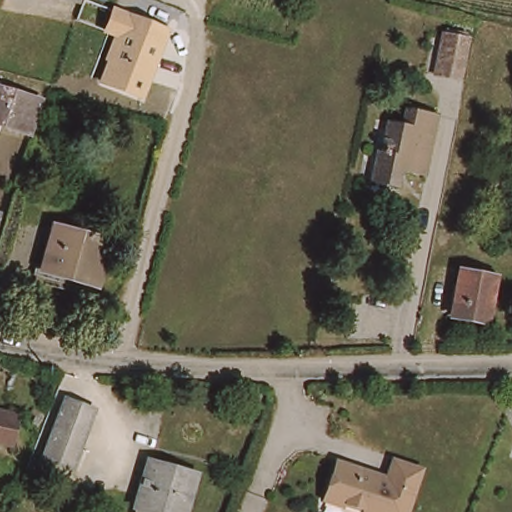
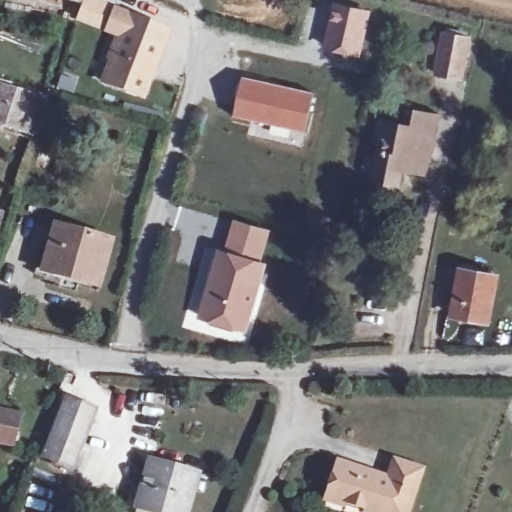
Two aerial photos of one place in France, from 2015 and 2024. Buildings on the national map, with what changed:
unchanged [(75,4),(60,0),(76,0),(75,4)]
unchanged [(144,101),(99,83),(107,62),(104,61),(112,38),(102,34),(77,22),(86,0),(97,0),(112,6),(170,30),(144,101)]
new [(333,1),(371,11),(359,60),(321,50),(333,1)]
unchanged [(461,79),(437,74),(444,35),(469,40),(461,79)]
new [(315,95),(307,134),(234,117),(244,77),(315,95)]
unchanged [(32,135),(0,125),(0,87),(42,100),(32,135)]
unchanged [(427,177),(403,172),(400,188),(372,182),(379,152),(383,152),(389,122),(404,125),(407,109),(439,116),(427,177)]
unchanged [(1,221),(0,224),(0,213),(3,214),(1,221)]
new [(272,232),(262,265),(222,254),(232,219),(272,232)]
unchanged [(40,275),(52,220),(114,241),(103,292),(40,275)]
new [(262,265),(265,266),(245,330),(204,317),(222,254),(262,265)]
unchanged [(489,322),(452,316),(461,270),(497,277),(489,322)]
unchanged [(95,410),(72,468),(44,457),(66,398),(95,410)]
unchanged [(19,416),(12,447),(0,445),(0,411),(19,416)]
unchanged [(347,502),(345,507),(342,506),(325,500),(337,462),(355,467),(388,478),(395,461),(422,470),(410,507),(408,512),(362,512),(364,507),(347,502)]
unchanged [(150,462),(197,475),(186,512),(136,512),(137,507),(150,462)]

